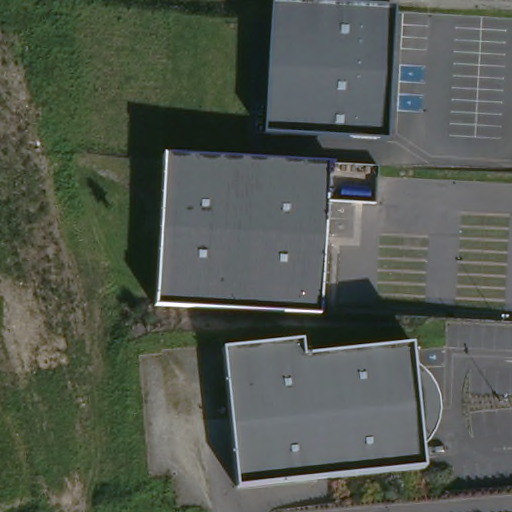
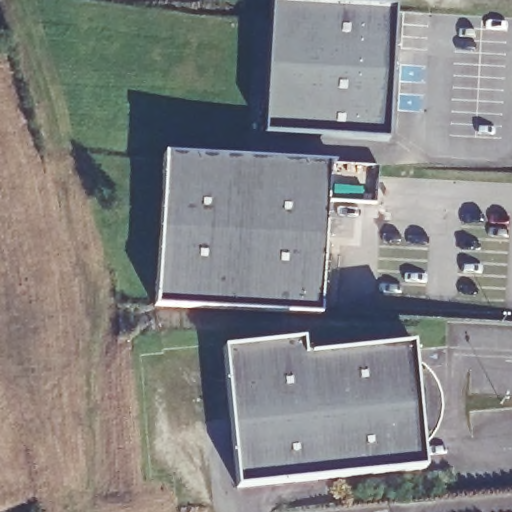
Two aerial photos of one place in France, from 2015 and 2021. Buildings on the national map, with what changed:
unchanged [(395,8),(386,139),(266,130),(273,1),(395,8)]
unchanged [(328,161),(321,311),(157,303),(164,155),(328,161)]
unchanged [(302,338),(305,355),(414,343),(416,362),(432,373),(442,390),(445,408),(440,425),(435,436),(426,446),(427,465),(240,485),(225,348),(302,338)]

